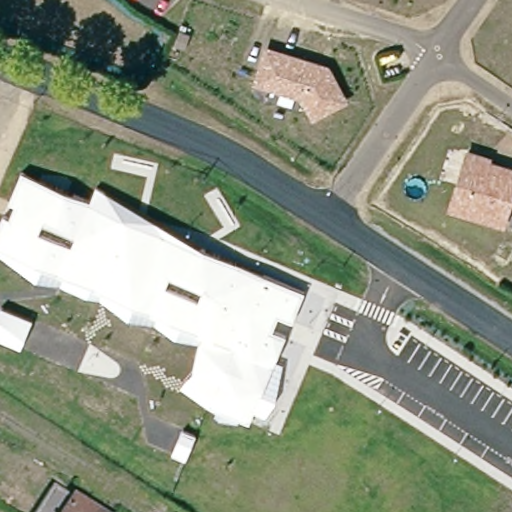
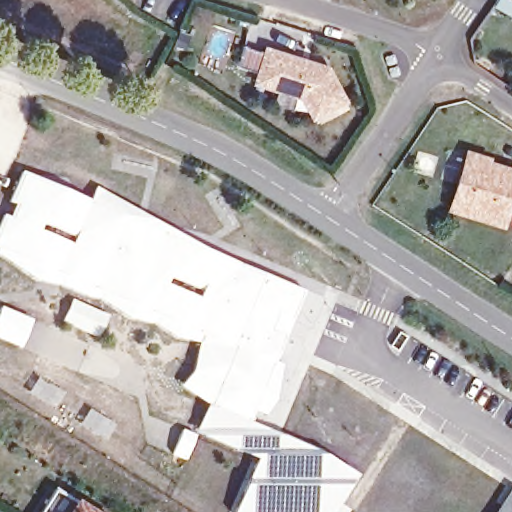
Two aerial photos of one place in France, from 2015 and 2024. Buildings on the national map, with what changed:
unchanged [(303,95),(257,81),(264,55),(266,48),(269,48),(271,49),(286,53),(308,60),(327,65),(345,98),(321,111),(314,115),(303,95)]
unchanged [(505,227),(451,210),(469,153),(490,159),(489,163),(505,168),(512,170),(512,203),(505,227)]
unchanged [(303,292),(293,323),(278,315),(270,331),(283,338),(274,362),(282,366),(275,400),(265,415),(254,411),(247,424),(208,406),(182,385),(192,370),(200,344),(176,340),(154,326),(129,320),(100,301),(88,300),(60,287),(36,283),(0,259),(0,220),(2,215),(11,219),(18,205),(11,202),(24,170),(91,202),(97,188),(203,250),(303,292)]
unchanged [(0,343),(0,307),(32,319),(21,352),(0,343)]
new [(258,461),(195,432),(208,406),(247,424),(249,421),(325,455),(357,477),(334,512),(234,512),(245,485),(258,461)]
new [(182,428),(198,435),(187,462),(171,455),(182,428)]
unchanged [(95,512),(39,512),(56,487),(95,512)]
new [(512,487),(512,512),(494,512),(511,487),(512,487)]

